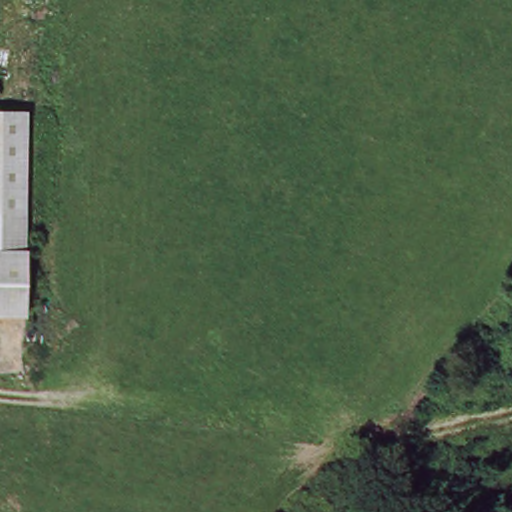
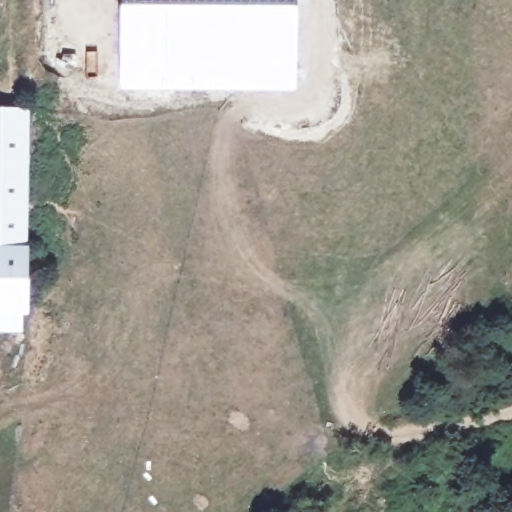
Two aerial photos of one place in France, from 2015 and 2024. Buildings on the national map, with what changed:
new [(296,0),(296,9),(295,90),(118,90),(118,58),(120,0),(296,0)]
unchanged [(31,116),(28,218),(0,216),(0,115),(31,116)]
unchanged [(0,253),(0,216),(28,218),(25,254),(0,253)]
unchanged [(22,322),(0,321),(0,253),(25,254),(22,322)]

